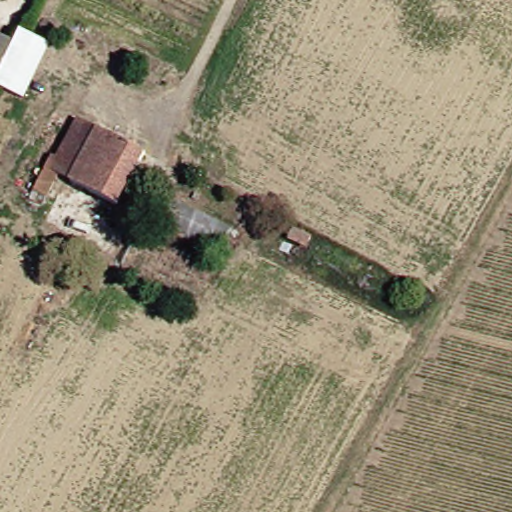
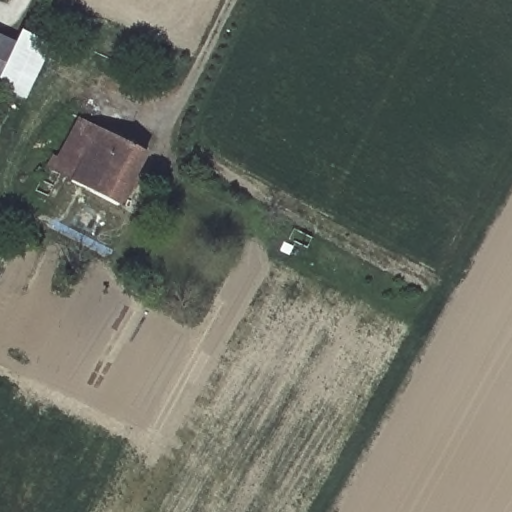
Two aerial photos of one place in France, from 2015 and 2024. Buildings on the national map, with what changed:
unchanged [(0,93),(0,44),(6,47),(15,32),(44,49),(18,102),(0,93)]
unchanged [(65,186),(53,179),(40,203),(28,197),(47,161),(51,162),(73,122),(92,133),(65,186)]
unchanged [(140,159),(112,211),(65,186),(92,133),(140,159)]

